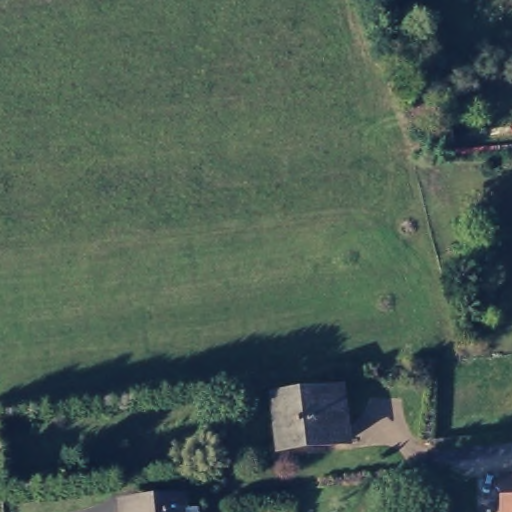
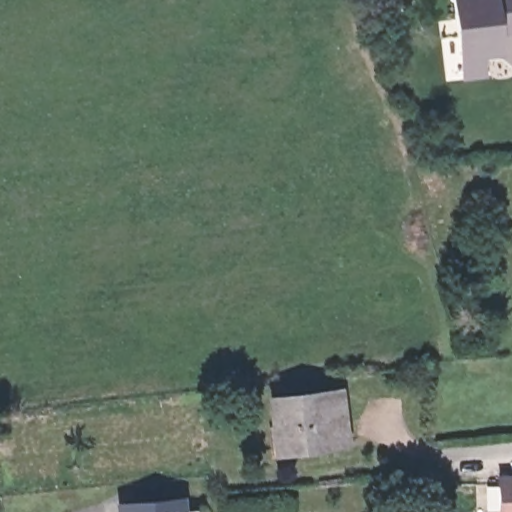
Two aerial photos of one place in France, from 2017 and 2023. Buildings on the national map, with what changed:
new [(500,36),(500,56),(484,58),(487,78),(464,80),(460,58),(454,0),(512,0),(512,35),(500,36)]
unchanged [(270,398),(336,392),(338,424),(339,439),(276,447),(272,431),(270,398)]
unchanged [(494,477),(512,475),(512,512),(496,512),(494,477)]
unchanged [(177,504),(178,512),(117,512),(117,508),(177,504)]

